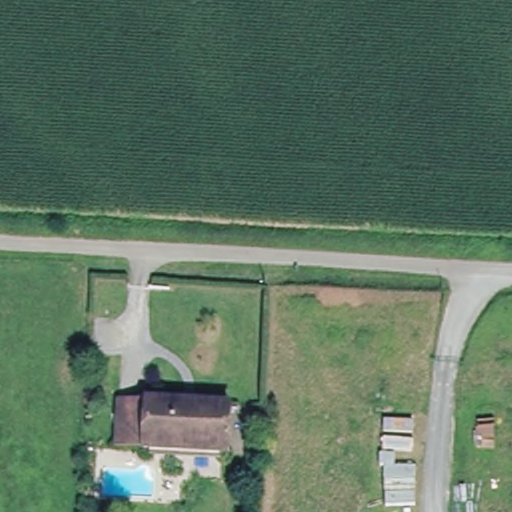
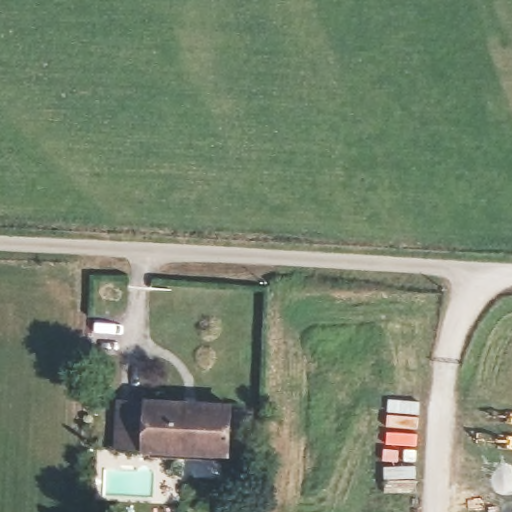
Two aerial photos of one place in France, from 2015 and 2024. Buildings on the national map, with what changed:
unchanged [(224,456),(144,453),(145,448),(114,446),(117,403),(147,404),(147,400),(227,402),(224,456)]

